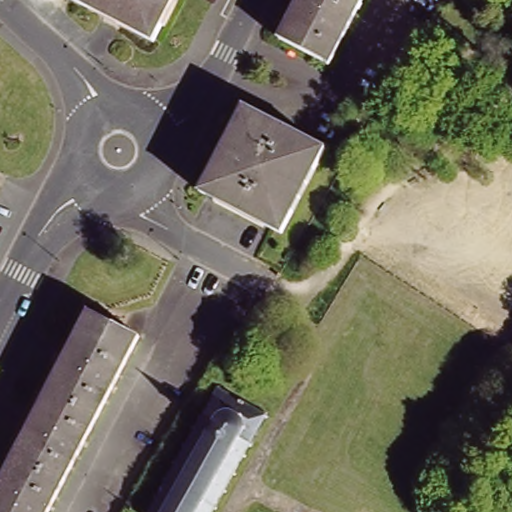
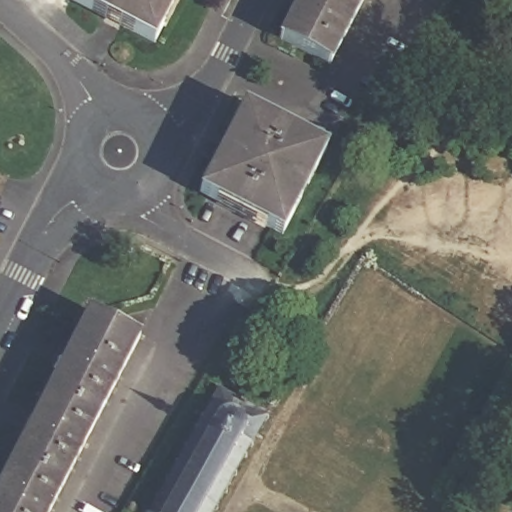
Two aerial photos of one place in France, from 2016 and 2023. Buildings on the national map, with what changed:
unchanged [(81,0),(179,0),(161,40),(81,0)]
unchanged [(284,36),(303,0),(366,0),(334,62),(284,36)]
unchanged [(331,147),(285,235),(206,192),(250,106),(331,147)]
unchanged [(247,312),(236,334),(223,327),(234,306),(247,312)]
unchanged [(46,512),(0,512),(0,482),(90,311),(139,337),(46,512)]
unchanged [(148,510),(151,511),(157,500),(155,498),(157,493),(160,495),(167,482),(165,480),(167,477),(170,478),(177,465),(175,463),(177,460),(180,461),(188,446),(186,445),(187,441),(191,442),(205,416),(202,415),(205,411),(207,413),(222,387),(223,385),(226,387),(225,389),(245,400),(247,398),(250,400),(249,402),(251,403),(260,409),(266,412),(267,410),(271,412),(269,415),(270,415),(272,416),(270,419),(267,417),(252,443),(255,445),(254,446),(257,448),(252,456),(249,455),(247,457),(245,456),(227,487),(229,489),(227,493),(225,491),(217,505),(219,506),(217,510),(214,509),(212,512),(147,512),(148,510)]

